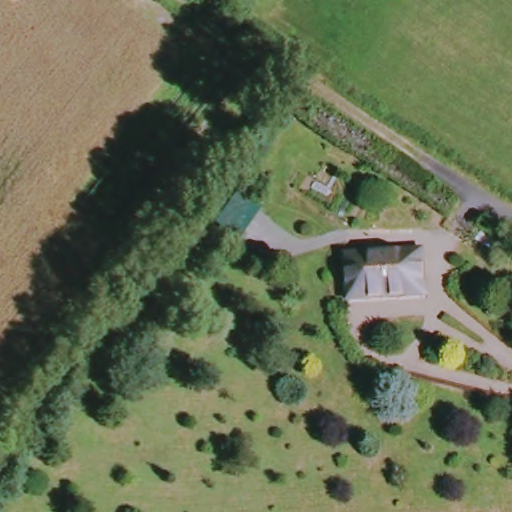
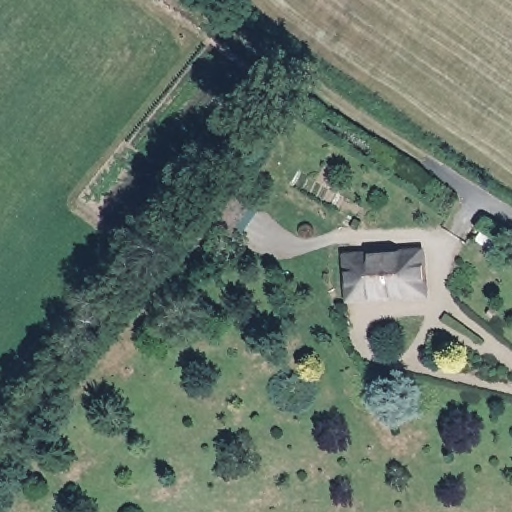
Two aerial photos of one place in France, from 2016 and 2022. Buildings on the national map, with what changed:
unchanged [(357,298),(355,261),(431,255),(434,300),(409,301),(358,305),(357,298)]

